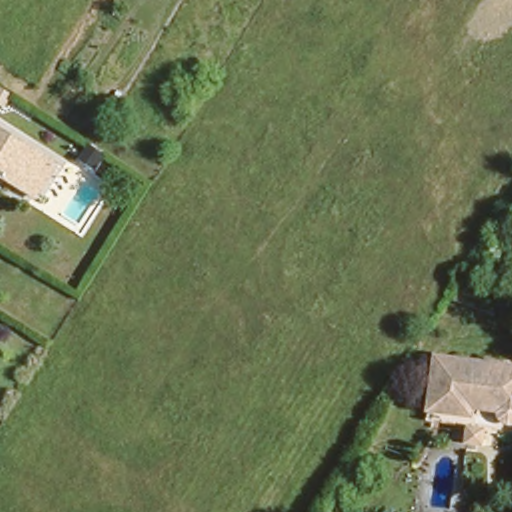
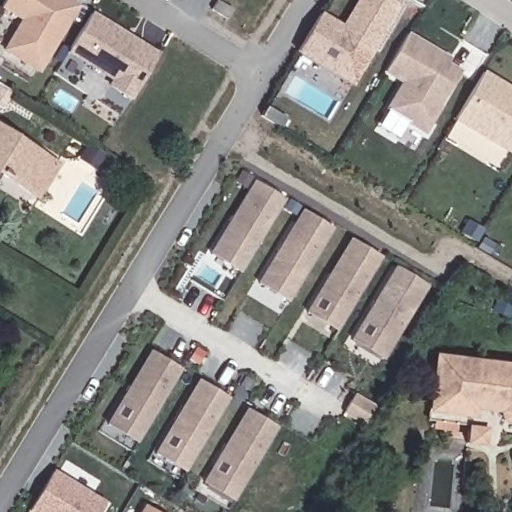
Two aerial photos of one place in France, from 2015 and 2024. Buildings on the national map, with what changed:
new [(0,50),(19,21),(0,9),(0,6),(4,0),(69,0),(79,6),(39,74),(0,51),(0,50)]
new [(348,59),(338,76),(297,53),(319,14),(342,28),(358,0),(387,0),(397,6),(362,67),(348,59)]
new [(95,14),(136,38),(133,44),(144,51),(147,45),(163,55),(136,99),(114,85),(118,79),(72,52),(95,14)]
new [(404,128),(396,141),(374,127),(382,114),(378,112),(394,84),(382,76),(408,35),(449,60),(444,66),(461,76),(423,139),(404,128)]
new [(454,119),(482,73),(512,91),(512,150),(510,153),(454,119)]
unchanged [(0,104),(0,88),(11,95),(4,107),(0,104)]
unchanged [(0,172),(0,127),(53,159),(32,192),(0,172)]
new [(209,253),(254,180),(284,199),(239,272),(209,253)]
new [(260,285),(304,211),(333,229),(288,302),(260,285)]
new [(308,314),(353,241),(381,259),(336,331),(308,314)]
new [(353,341),(397,269),(426,287),(382,359),(353,341)]
new [(104,425),(149,351),(179,370),(134,443),(104,425)]
unchanged [(509,419),(506,419),(502,418),(499,416),(498,414),(494,406),(468,403),(467,411),(424,406),(432,352),(512,362),(512,417),(509,419)]
new [(153,455),(197,380),(227,398),(183,473),(153,455)]
new [(358,396),(379,409),(368,427),(347,414),(358,396)]
new [(201,484),(245,409),(275,427),(230,502),(201,484)]
unchanged [(483,444),(468,442),(469,429),(484,432),(483,444)]
new [(108,505),(103,512),(33,512),(56,473),(108,505)]
new [(158,512),(146,512),(149,507),(158,512)]

